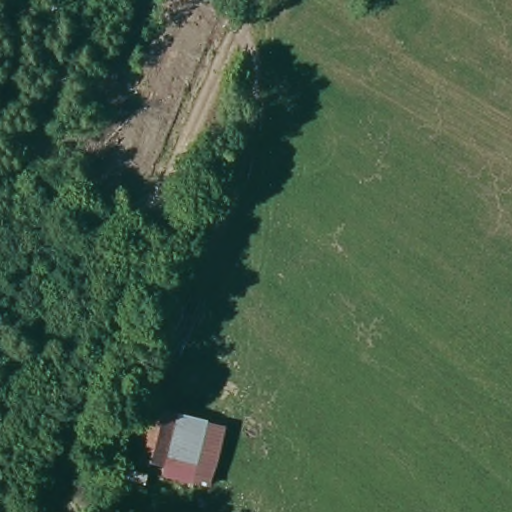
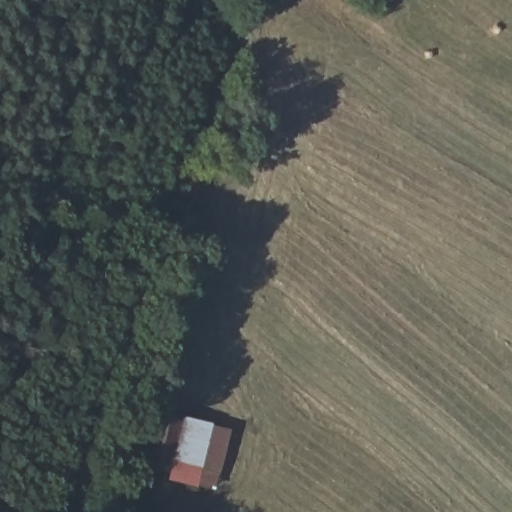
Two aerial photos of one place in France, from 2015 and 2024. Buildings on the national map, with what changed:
unchanged [(215,491),(162,480),(162,470),(126,461),(137,408),(229,429),(215,491)]

